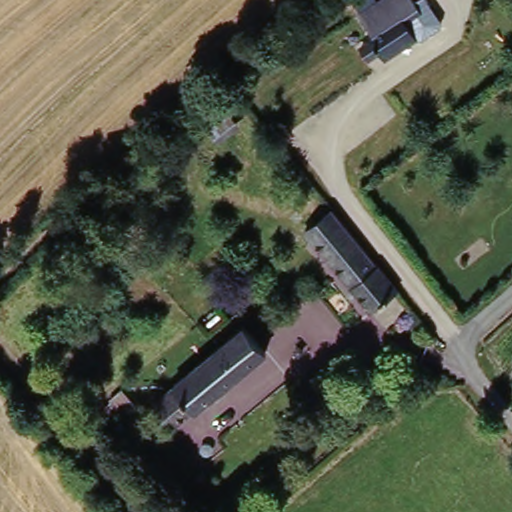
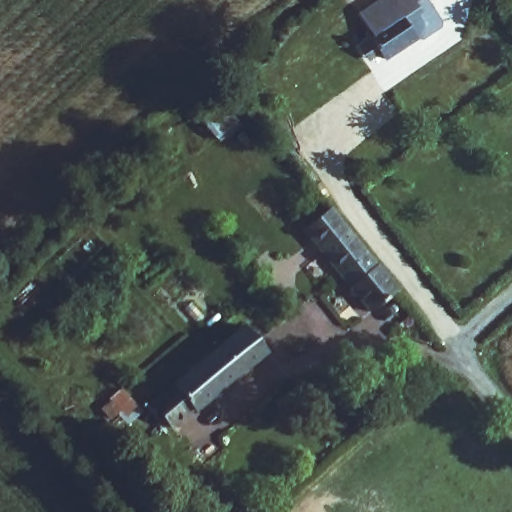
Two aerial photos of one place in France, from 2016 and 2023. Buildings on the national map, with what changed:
unchanged [(419,35),(387,59),(381,51),(370,59),(360,45),(375,35),(359,12),(376,0),(416,0),(423,9),(408,21),(419,35)]
unchanged [(220,100),(236,118),(215,136),(200,117),(220,100)]
unchanged [(400,286),(373,308),(307,226),(334,204),(400,286)]
unchanged [(175,384),(175,382),(246,322),(269,348),(198,407),(194,407),(174,424),(155,400),(175,384)]
unchanged [(121,389),(143,412),(131,422),(110,398),(121,389)]

